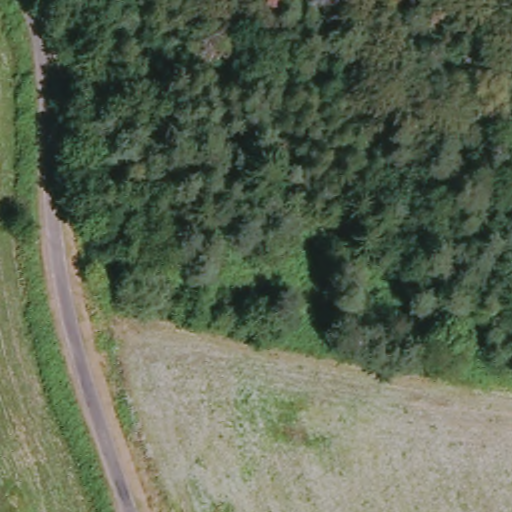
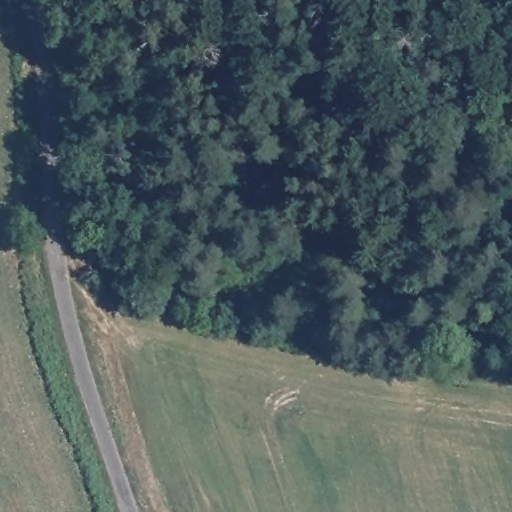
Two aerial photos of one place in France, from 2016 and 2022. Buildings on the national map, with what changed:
unchanged [(419,347),(414,320),(439,315),(443,343),(419,347)]

